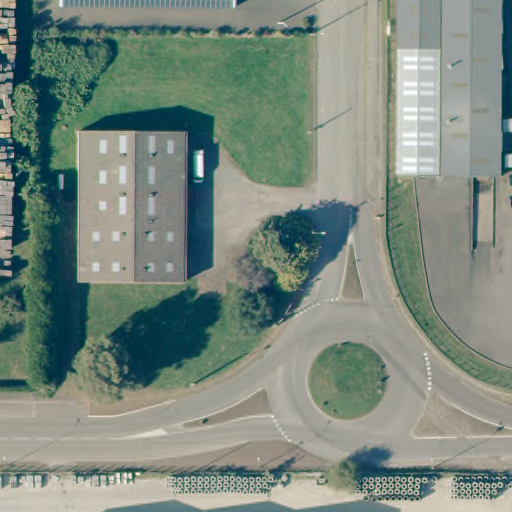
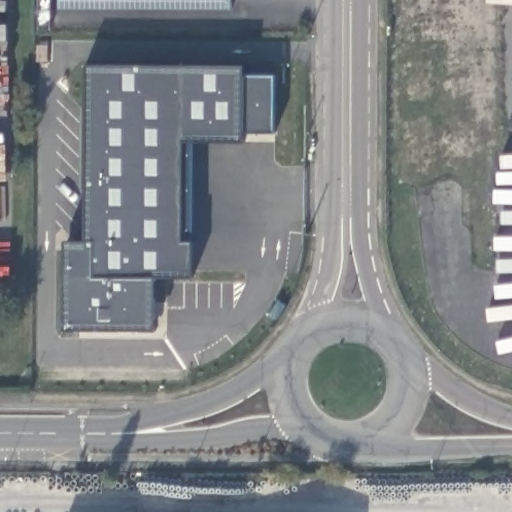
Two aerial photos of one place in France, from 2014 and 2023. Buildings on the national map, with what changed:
unchanged [(61,8),(61,0),(107,0),(106,7),(61,8)]
unchanged [(109,9),(109,7),(106,7),(107,0),(233,0),(234,8),(109,9)]
demolished [(396,173),(398,0),(502,0),(499,174),(396,173)]
new [(64,239),(84,240),(87,64),(244,64),(244,73),(274,73),(274,131),(242,131),(242,139),(190,139),(192,240),(193,277),(154,277),(154,328),(65,329),(64,239)]
demolished [(184,133),(184,283),(76,283),(76,133),(184,133)]

